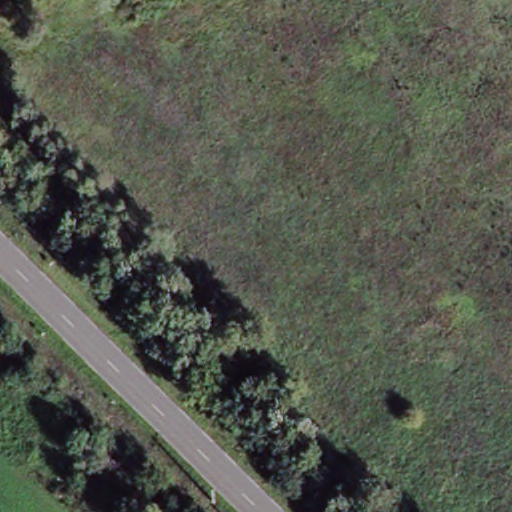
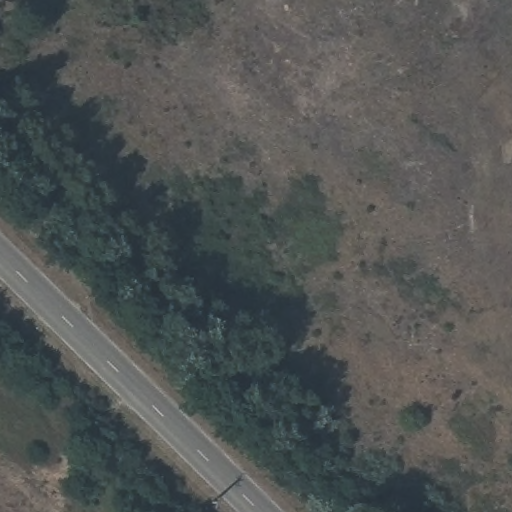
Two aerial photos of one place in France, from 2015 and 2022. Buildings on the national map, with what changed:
[]

